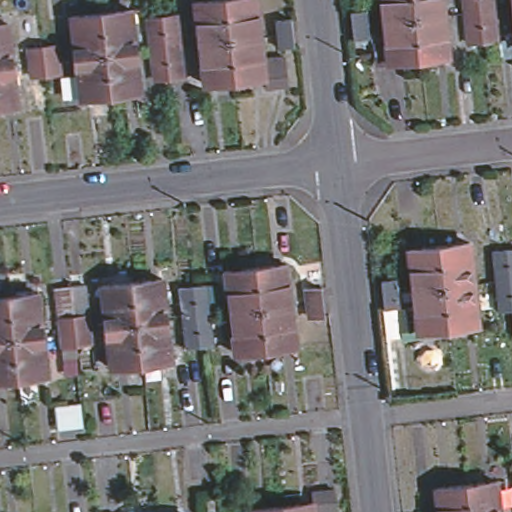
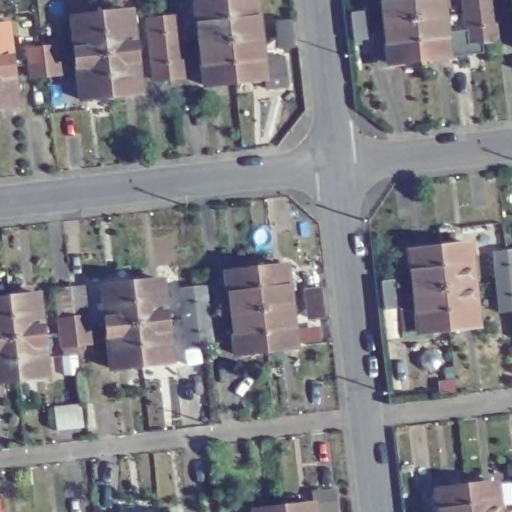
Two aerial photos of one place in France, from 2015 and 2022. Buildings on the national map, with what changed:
unchanged [(384,22),(381,0),(442,0),(444,16),(384,22)]
unchanged [(467,29),(465,13),(463,0),(490,0),(492,10),(494,26),(467,29)]
unchanged [(195,49),(191,11),(251,4),(255,42),(195,49)]
unchanged [(349,41),(347,27),(345,12),(358,11),(360,26),(361,41),(349,41)]
unchanged [(139,52),(80,58),(76,19),(134,12),(139,52)]
unchanged [(151,60),(149,46),(161,45),(157,17),(172,16),(176,45),(177,56),(179,71),(153,74),(151,60)]
unchanged [(444,16),(449,58),(389,65),(384,22),(444,16)]
unchanged [(278,39),(277,25),(290,25),(291,37),(292,51),(279,52),(278,39)]
unchanged [(0,67),(0,29),(10,27),(15,66),(0,67)]
unchanged [(261,94),(260,85),(200,91),(195,49),(255,42),(257,63),(279,62),(282,92),(261,94)]
unchanged [(33,64),(32,52),(59,49),(60,61),(62,77),(35,80),(33,64)]
unchanged [(139,52),(144,94),(85,100),(80,58),(139,52)]
unchanged [(0,111),(0,67),(15,66),(18,109),(0,111)]
unchanged [(480,326),(419,333),(414,292),(409,253),(470,247),(475,285),(480,326)]
unchanged [(512,311),(509,282),(494,284),(492,267),(491,253),(512,251),(512,311)]
unchanged [(290,337),(231,344),(227,303),(222,264),(282,257),(286,297),(290,337)]
unchanged [(173,362),(114,368),(110,328),(106,289),(165,282),(169,321),(173,362)]
unchanged [(378,297),(377,282),(390,282),(391,295),(392,310),(380,312),(378,297)]
unchanged [(65,350),(62,334),(62,321),(58,322),(56,290),(87,287),(91,317),(89,317),(90,331),(92,346),(65,350)]
unchanged [(327,302),(329,318),(317,320),(315,303),(313,291),(326,289),(327,302)]
unchanged [(209,322),(182,325),(180,309),(179,295),(206,293),(207,306),(209,322)]
unchanged [(40,342),(45,382),(0,387),(0,306),(35,303),(40,342)]
unchanged [(497,485),(500,512),(440,512),(437,492),(497,485)]
unchanged [(307,498),(330,496),(331,512),(288,512),(309,510),(307,498)]

